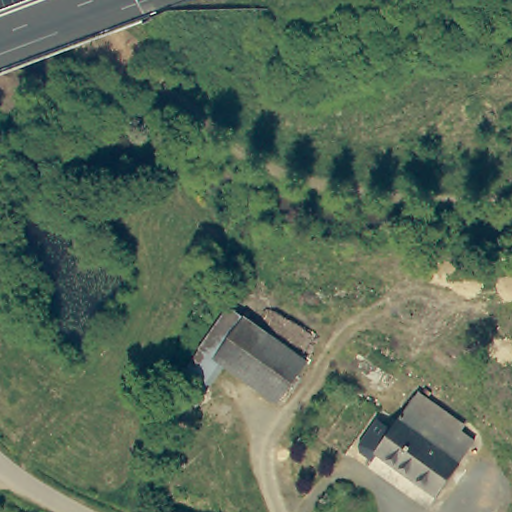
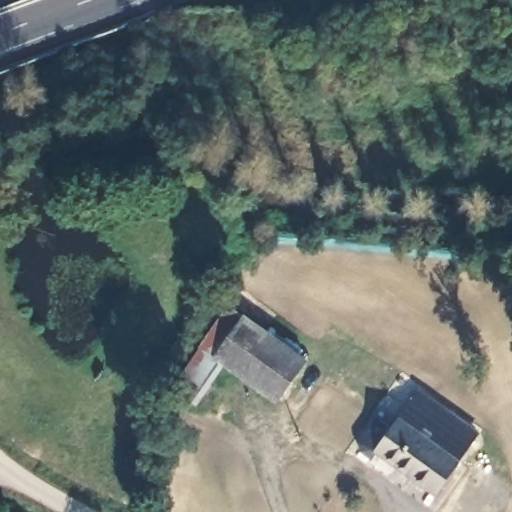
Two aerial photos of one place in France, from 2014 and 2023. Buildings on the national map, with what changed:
unchanged [(285,398),(227,357),(208,344),(237,303),(314,357),(285,398)]
unchanged [(199,399),(180,385),(208,344),(227,357),(199,399)]
unchanged [(373,451),(413,397),(473,440),(434,495),(373,451)]

